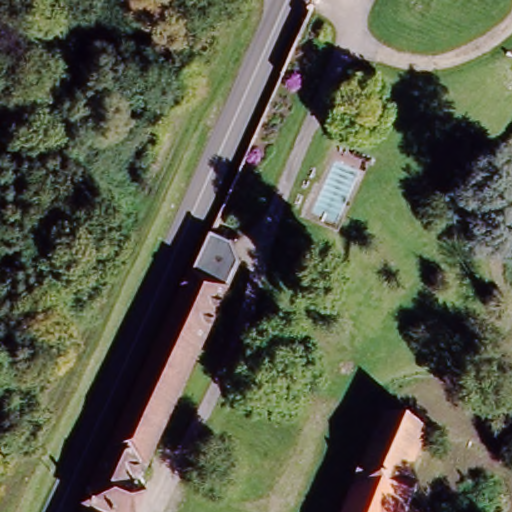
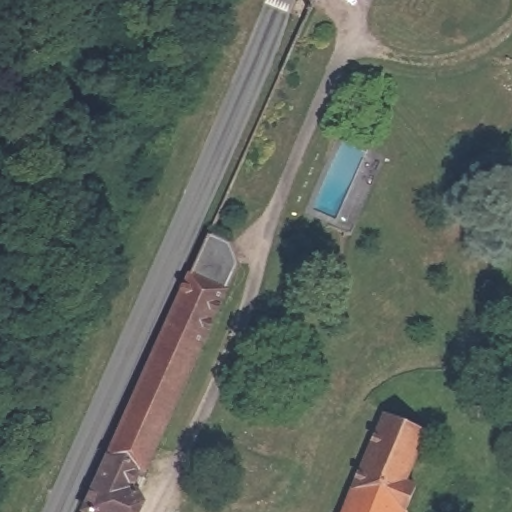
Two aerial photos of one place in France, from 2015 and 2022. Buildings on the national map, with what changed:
unchanged [(228,230),(241,254),(203,337),(167,322),(211,223),(228,230)]
unchanged [(115,441),(135,399),(167,322),(203,337),(150,458),(115,441)]
unchanged [(399,512),(339,512),(380,415),(419,432),(398,481),(410,486),(399,512)]
unchanged [(140,479),(145,482),(130,512),(126,511),(90,496),(115,441),(150,458),(140,479)]
unchanged [(90,496),(126,511),(126,512),(83,512),(90,496)]

